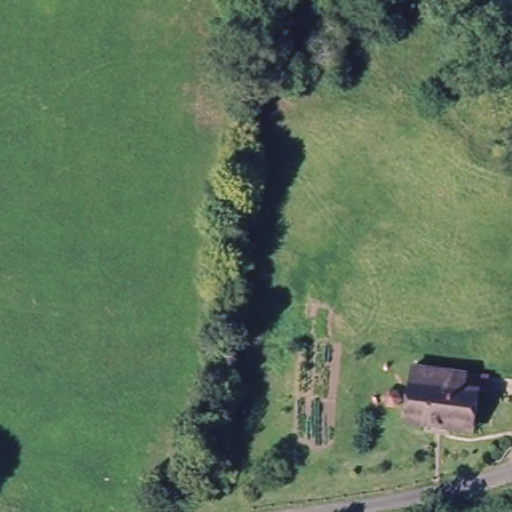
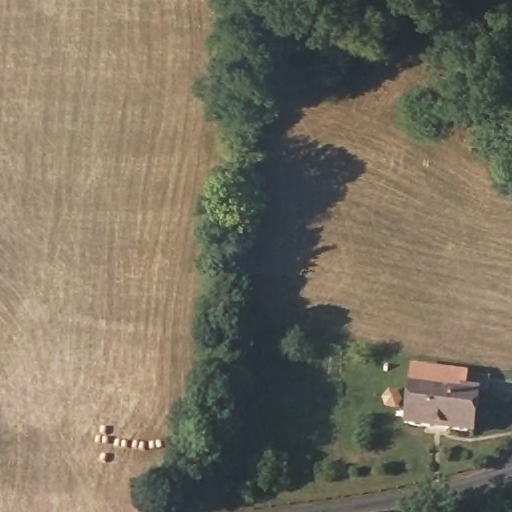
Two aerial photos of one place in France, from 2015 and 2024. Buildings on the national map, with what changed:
unchanged [(455,374),(453,390),(468,393),(463,433),(406,422),(414,369),(455,374)]

